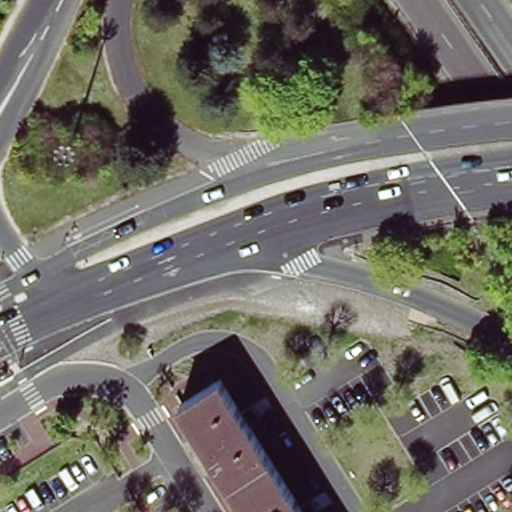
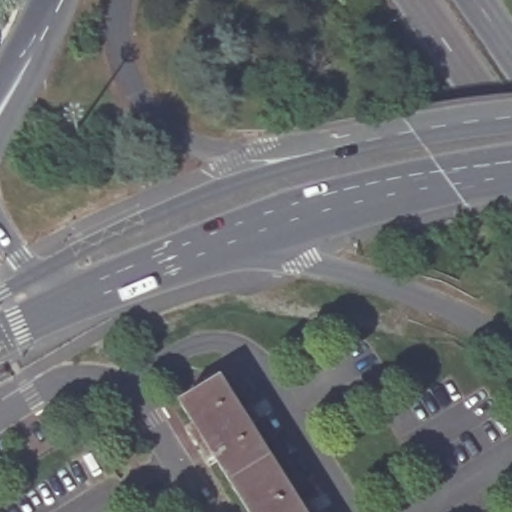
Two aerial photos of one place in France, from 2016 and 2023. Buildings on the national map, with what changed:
unchanged [(210,472),(185,433),(194,427),(180,404),(202,390),(198,385),(216,374),(242,414),(252,407),(261,420),(249,427),(302,509),(313,502),(319,512),(249,512),(219,466),(210,472)]

